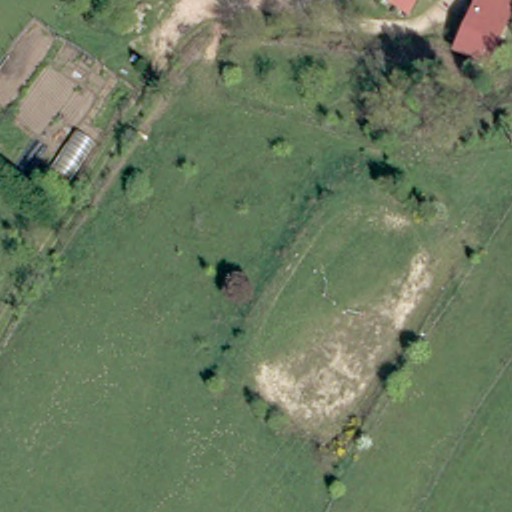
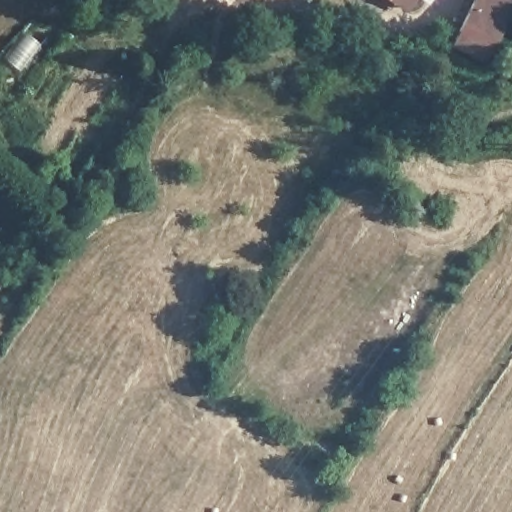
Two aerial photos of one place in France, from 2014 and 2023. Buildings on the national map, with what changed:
unchanged [(387,0),(401,0),(395,7),(387,0)]
unchanged [(473,69),(447,53),(445,51),(473,0),(512,0),(512,6),(511,7),(490,45),(487,44),(473,69)]

